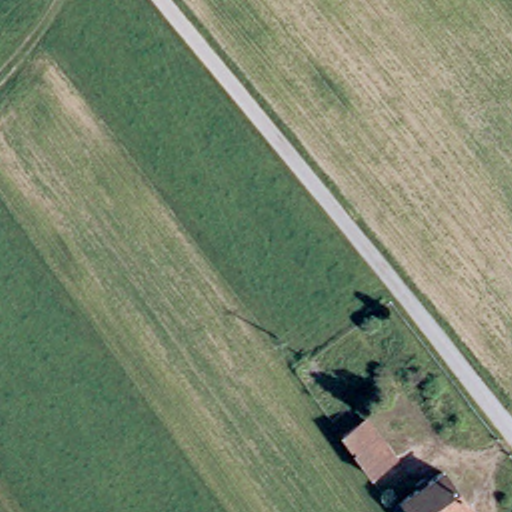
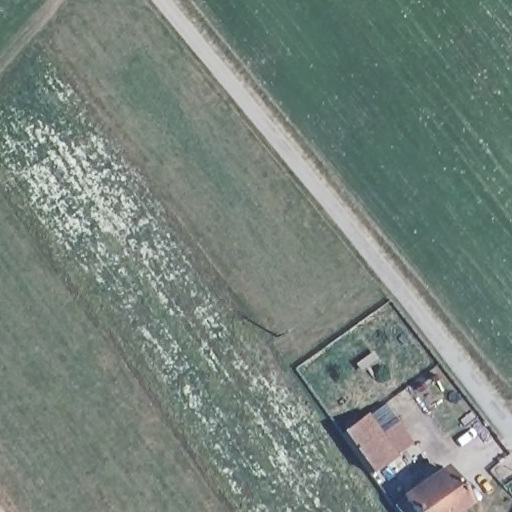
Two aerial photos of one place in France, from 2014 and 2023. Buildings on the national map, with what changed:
unchanged [(375,421),(400,460),(374,477),(346,438),(375,421)]
unchanged [(422,486),(419,482),(429,475),(432,480),(448,469),(473,504),(462,512),(401,512),(396,504),(422,486)]

